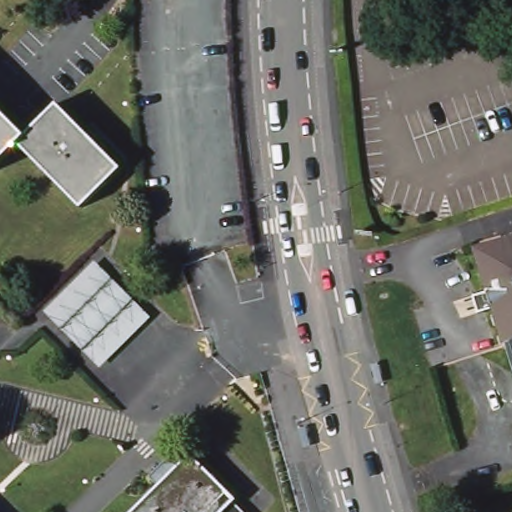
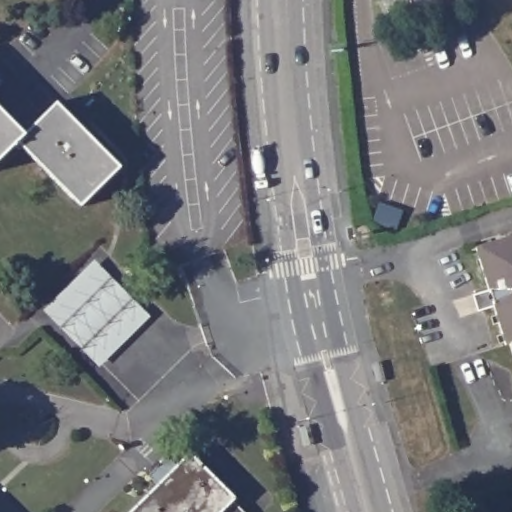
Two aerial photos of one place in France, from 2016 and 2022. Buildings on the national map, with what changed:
unchanged [(63,105),(126,166),(87,205),(24,142),(0,165),(0,104),(31,135),(63,105)]
unchanged [(511,344),(499,307),(484,311),(479,295),(495,291),(481,248),(512,239),(512,344),(511,344)]
unchanged [(101,260),(156,315),(107,366),(51,311),(101,260)]
unchanged [(263,378),(266,388),(260,390),(258,379),(263,378)]
unchanged [(154,476),(173,457),(182,465),(196,452),(239,496),(236,499),(249,512),(136,512),(163,484),(154,476)]

